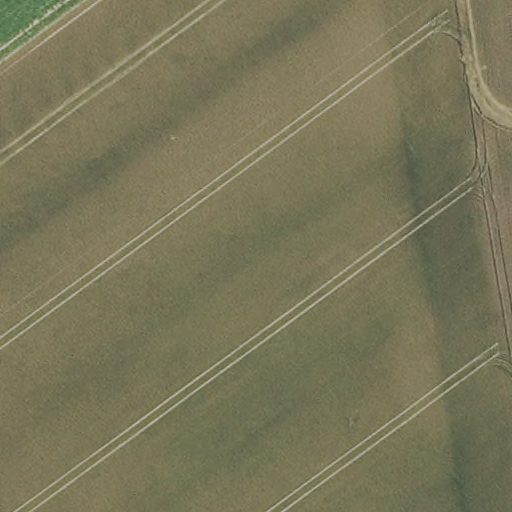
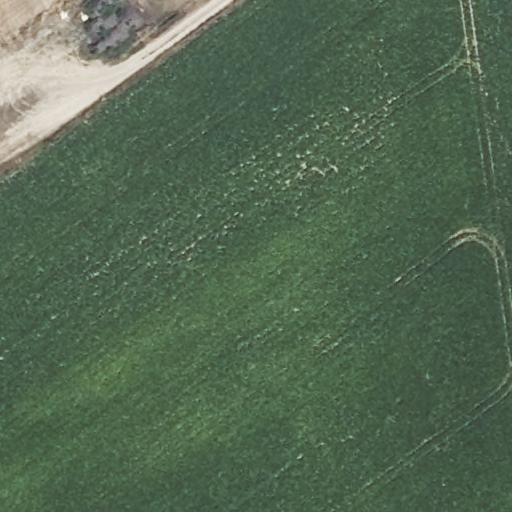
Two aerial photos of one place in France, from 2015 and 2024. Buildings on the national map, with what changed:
[]

